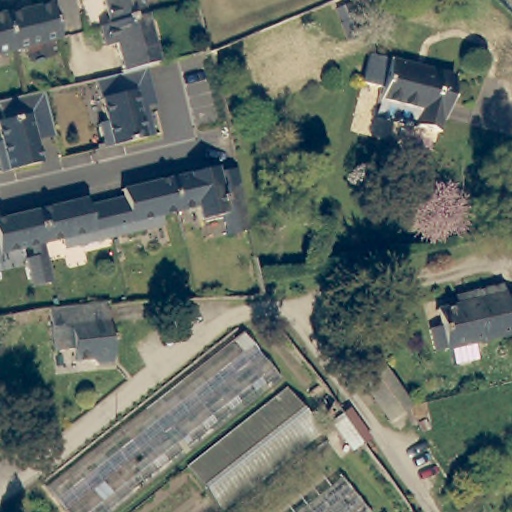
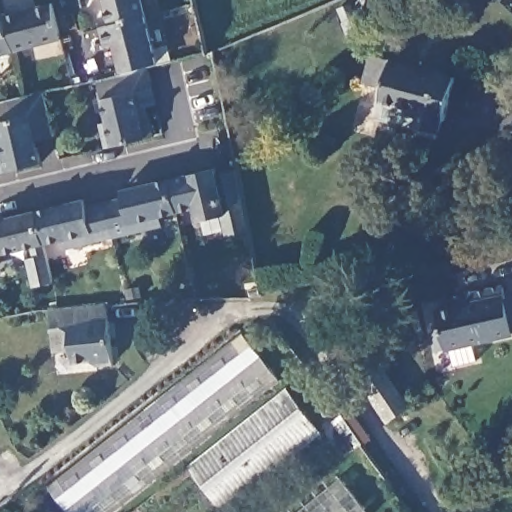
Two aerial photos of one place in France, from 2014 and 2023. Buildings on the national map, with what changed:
unchanged [(142,0),(148,23),(111,32),(102,0),(142,0)]
unchanged [(52,6),(60,40),(61,43),(14,55),(5,18),(52,6)]
unchanged [(5,18),(14,55),(0,58),(0,17),(4,16),(5,18)]
unchanged [(123,79),(115,51),(105,54),(100,35),(111,32),(148,23),(159,70),(146,73),(123,79)]
unchanged [(454,80),(444,124),(439,123),(436,136),(411,130),(414,116),(378,106),(389,62),(454,80)]
unchanged [(100,131),(106,130),(96,85),(123,79),(146,73),(155,111),(139,115),(140,122),(148,121),(153,143),(124,150),(105,154),(100,131)]
unchanged [(0,144),(0,141),(0,123),(4,122),(0,106),(0,103),(24,97),(44,93),(54,133),(30,138),(33,150),(37,149),(40,164),(16,170),(1,174),(0,169),(0,144)]
unchanged [(251,237),(227,242),(222,223),(199,228),(195,215),(177,219),(169,186),(174,184),(215,175),(217,180),(239,176),(251,237)]
unchanged [(177,219),(160,223),(161,228),(144,232),(145,237),(112,244),(104,208),(123,204),(120,197),(169,186),(177,219)]
unchanged [(112,244),(80,252),(79,248),(64,251),(63,246),(44,250),(36,216),(83,205),(84,213),(104,208),(112,244)]
unchanged [(53,288),(32,293),(26,266),(34,264),(30,253),(0,260),(0,224),(36,216),(44,250),(53,288)]
unchanged [(429,331),(441,327),(437,311),(472,301),(471,292),(499,284),(502,284),(504,294),(512,293),(512,332),(446,349),(434,352),(429,331)]
unchanged [(58,307),(106,301),(107,304),(113,365),(96,367),(89,362),(71,364),(70,357),(54,359),(48,308),(58,307)]
unchanged [(46,489),(156,403),(243,334),(252,346),(280,381),(218,431),(115,512),(64,512),(49,493),(46,489)]
unchanged [(411,407),(389,422),(361,379),(383,364),(411,407)]
unchanged [(322,436),(224,512),(223,512),(189,470),(288,392),(322,436)]
unchanged [(330,408),(333,414),(329,418),(324,417),(323,412),(326,408),(330,408)]
unchanged [(356,451),(333,424),(346,413),(368,441),(364,444),(356,451)]
unchanged [(367,512),(276,512),(331,469),(367,512)]

